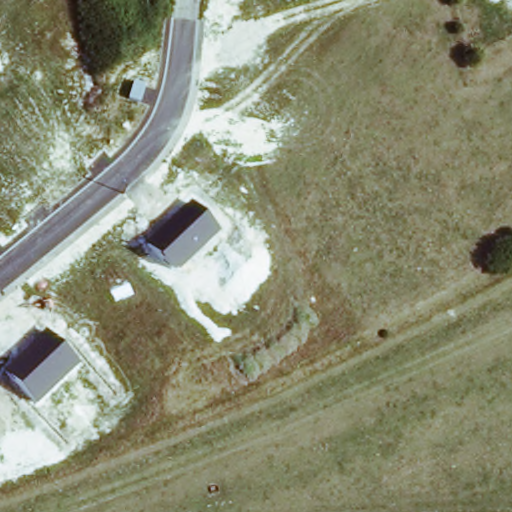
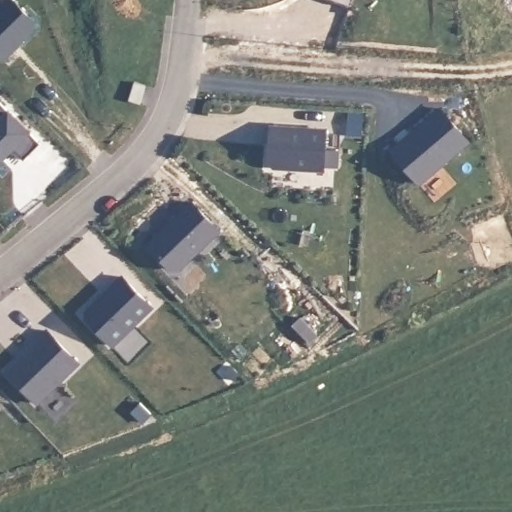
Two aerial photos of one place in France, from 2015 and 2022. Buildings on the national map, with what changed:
new [(18,2),(39,27),(39,34),(6,63),(0,56),(0,18),(18,2)]
new [(0,160),(0,105),(1,103),(43,148),(26,164),(15,152),(3,164),(0,160)]
new [(437,112),(466,143),(422,184),(393,153),(437,112)]
new [(273,129),(328,134),(324,173),(275,169),(270,163),(273,129)]
unchanged [(179,272),(171,270),(146,247),(191,203),(219,232),(179,272)]
new [(85,316),(98,304),(99,306),(107,299),(106,298),(123,282),(151,313),(111,350),(85,322),(85,316)]
unchanged [(4,371),(46,331),(79,364),(36,404),(4,371)]

